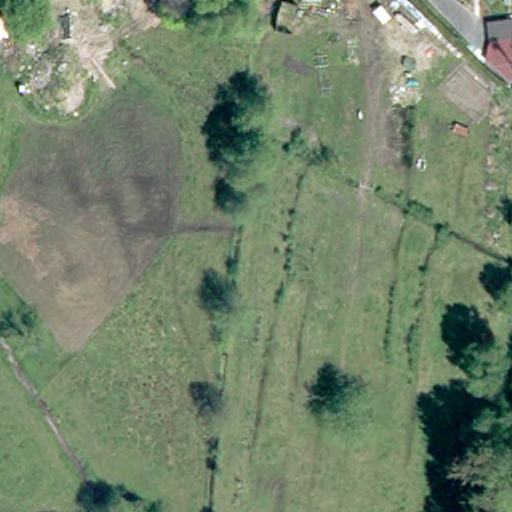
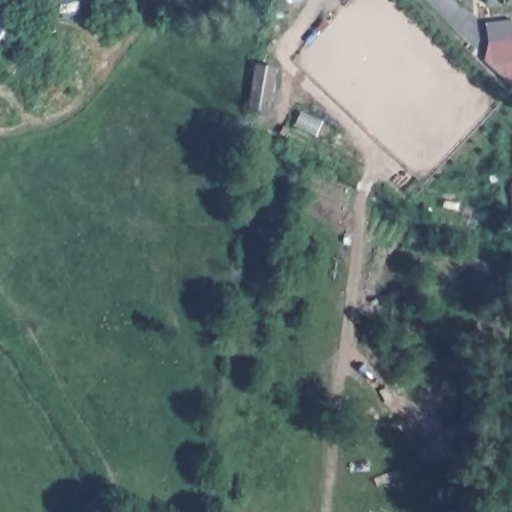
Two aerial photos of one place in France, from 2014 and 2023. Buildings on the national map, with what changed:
unchanged [(1,20),(0,21),(0,19),(1,20)]
unchanged [(11,33),(0,42),(0,21),(1,20),(11,33)]
unchanged [(512,39),(486,41),(484,23),(510,20),(512,39)]

